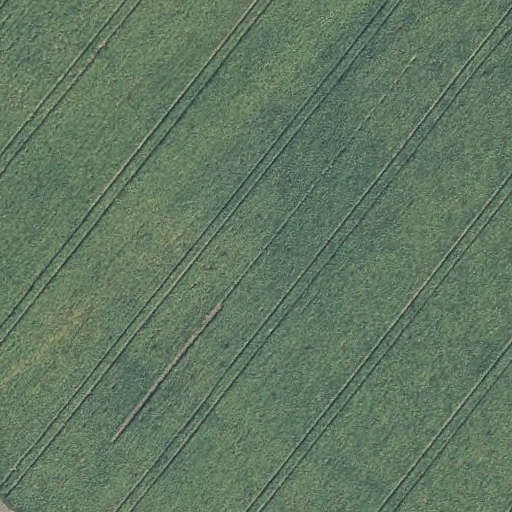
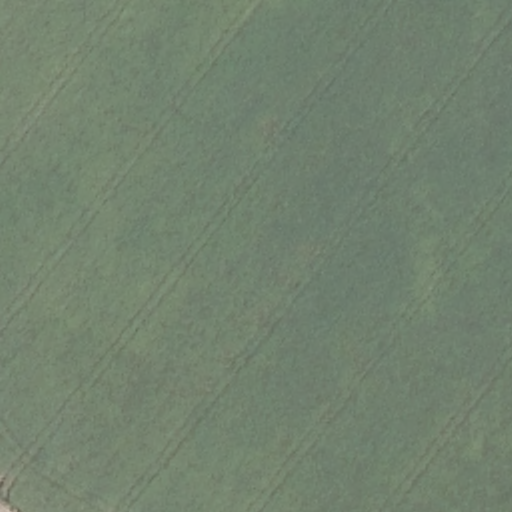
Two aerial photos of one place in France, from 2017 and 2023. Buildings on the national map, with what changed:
[]

